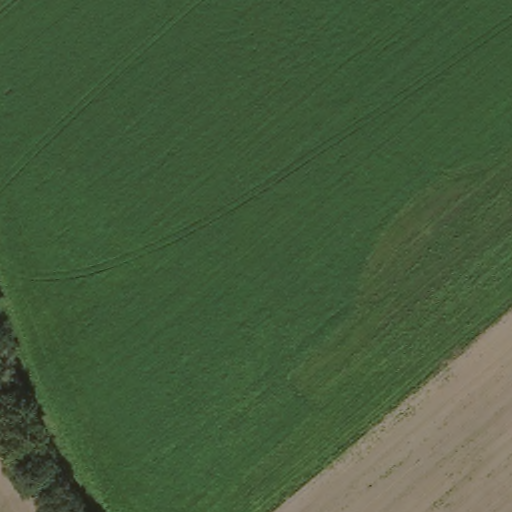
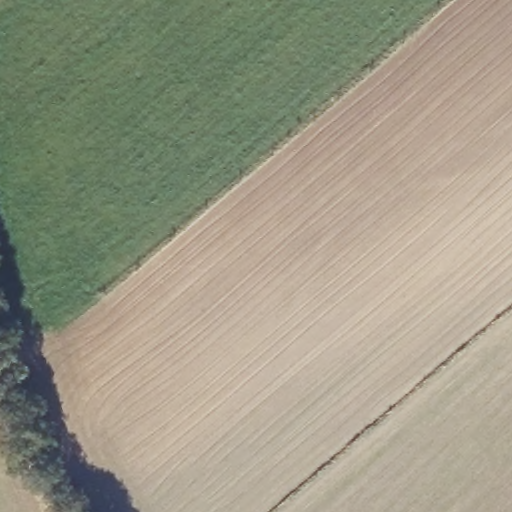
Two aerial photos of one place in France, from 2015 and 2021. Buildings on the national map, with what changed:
[]

